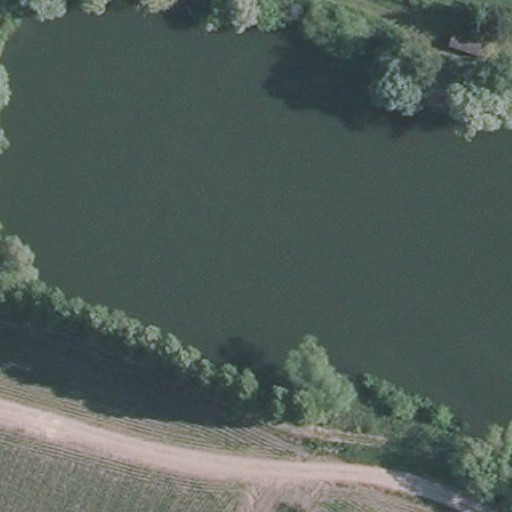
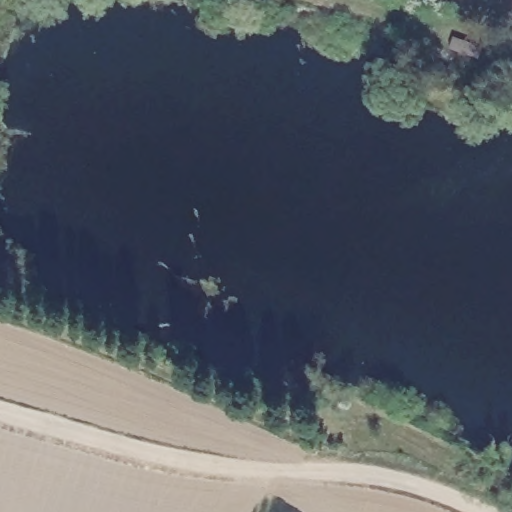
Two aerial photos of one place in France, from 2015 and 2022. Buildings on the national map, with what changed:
unchanged [(476,59),(444,46),(451,30),(482,40),(476,59)]

